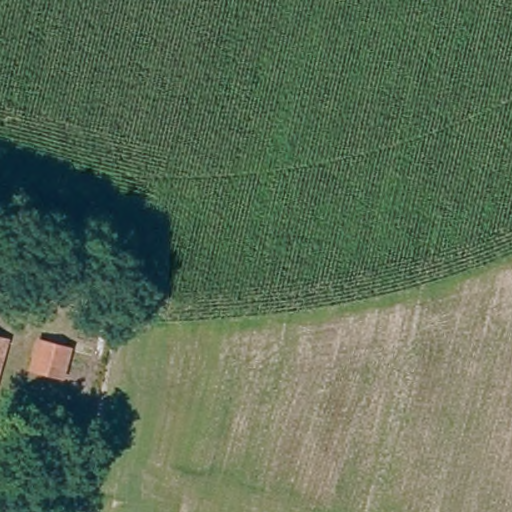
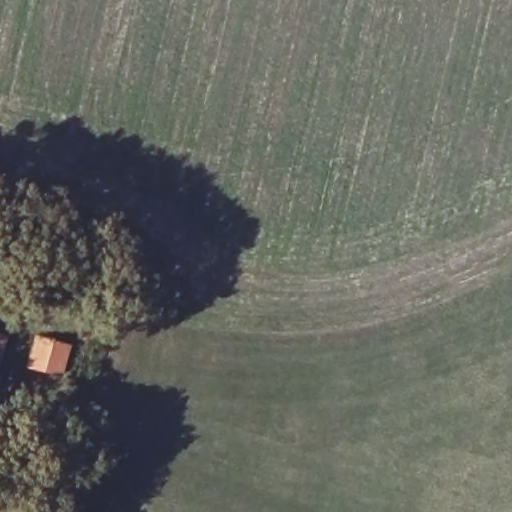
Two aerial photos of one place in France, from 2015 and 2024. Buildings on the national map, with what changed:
unchanged [(0,270),(0,240),(12,244),(3,271),(0,270)]
unchanged [(0,334),(9,337),(0,363),(0,334)]
unchanged [(60,378),(26,367),(34,342),(69,355),(60,378)]

